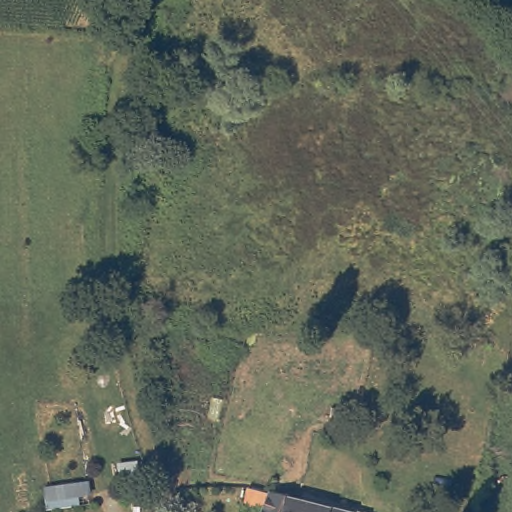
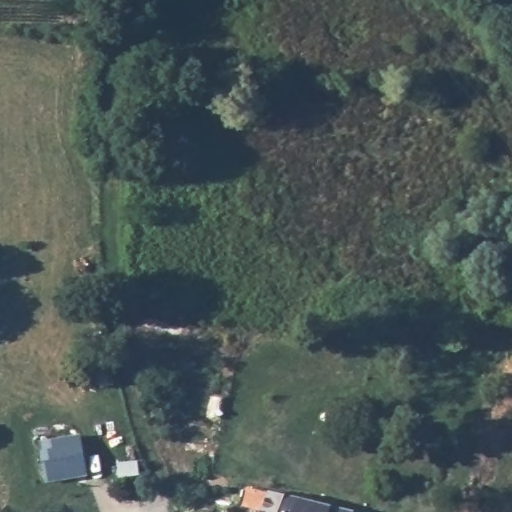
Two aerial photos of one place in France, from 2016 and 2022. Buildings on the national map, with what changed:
unchanged [(352,406),(351,425),(330,423),(332,405),(352,406)]
new [(39,443),(80,436),(88,475),(46,482),(39,443)]
unchanged [(251,492),(275,494),(278,491),(295,495),(289,512),(267,512),(249,509),(251,492)]
unchanged [(354,512),(289,512),(295,495),(354,512)]

